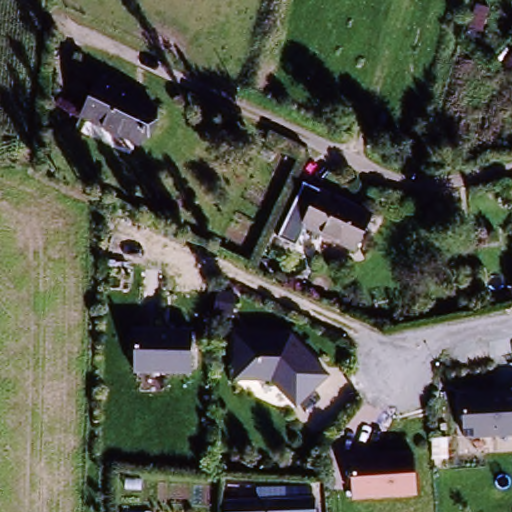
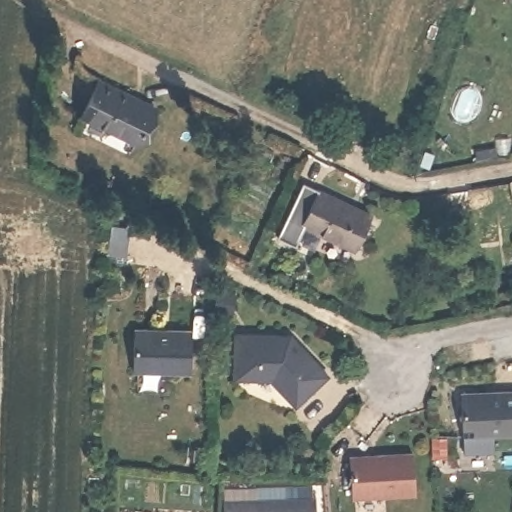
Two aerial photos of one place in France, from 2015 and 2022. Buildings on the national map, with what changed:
unchanged [(158,108),(144,140),(82,113),(97,80),(158,108)]
unchanged [(294,216),(306,189),(365,216),(349,251),(304,230),(290,224),(294,216)]
unchanged [(504,190),(512,189),(512,209),(508,210),(504,190)]
unchanged [(189,331),(189,372),(134,371),(134,329),(189,331)]
unchanged [(293,336),(328,378),(292,408),(268,381),(233,381),(232,337),(293,336)]
unchanged [(512,434),(463,438),(460,394),(512,391),(512,434)]
unchanged [(413,452),(416,499),(352,502),(350,454),(413,452)]
unchanged [(255,499),(256,489),(313,487),(315,512),(221,512),(220,500),(255,499)]

